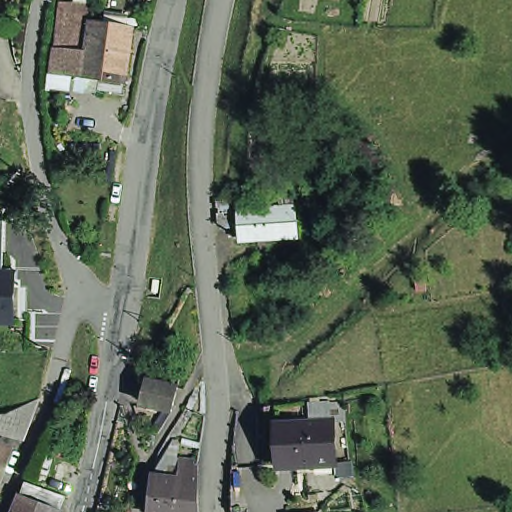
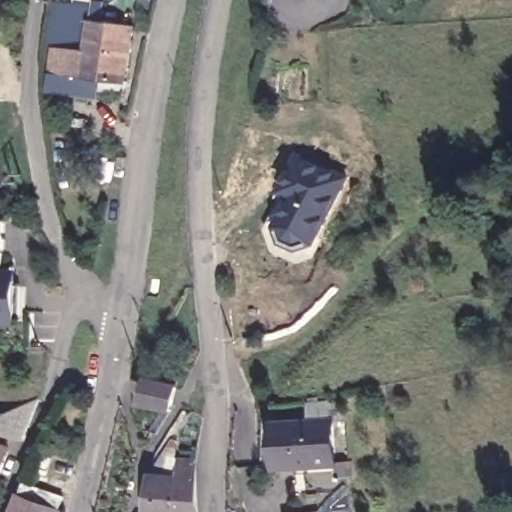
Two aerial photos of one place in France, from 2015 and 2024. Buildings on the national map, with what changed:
unchanged [(82,82),(50,78),(52,52),(57,9),(73,10),(90,12),(89,25),(130,30),(124,88),(123,99),(98,95),(100,84),(82,82)]
new [(341,180),(313,245),(299,249),(285,244),(280,229),(294,198),(283,194),(300,160),(341,180)]
demolished [(301,238),(242,242),(242,227),(222,228),(220,201),(240,200),(241,209),(299,205),(301,238)]
unchanged [(0,268),(12,268),(11,324),(0,323),(0,268)]
unchanged [(171,409),(142,403),(147,379),(176,384),(171,409)]
unchanged [(0,413),(1,413),(32,399),(17,441),(2,437),(0,436),(0,413)]
unchanged [(333,463),(276,468),(273,424),(307,422),(306,404),(326,403),(327,420),(330,420),(333,463)]
unchanged [(152,494),(154,476),(155,469),(158,463),(173,439),(177,441),(175,459),(177,459),(195,459),(197,512),(146,512),(147,503),(147,494),(152,494)]
unchanged [(0,447),(2,448),(0,454),(0,447)]
unchanged [(23,487),(38,492),(61,501),(58,512),(15,512),(18,502),(23,487)]

